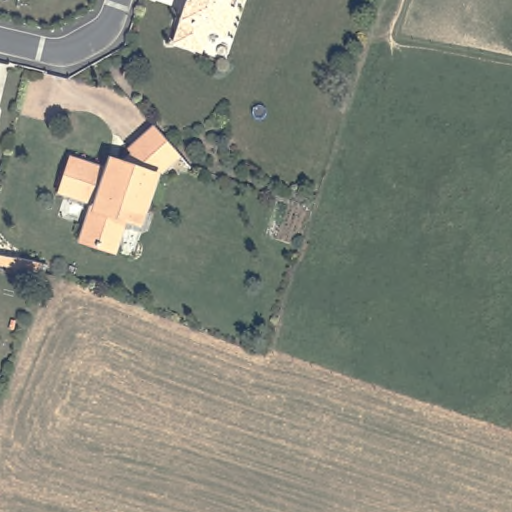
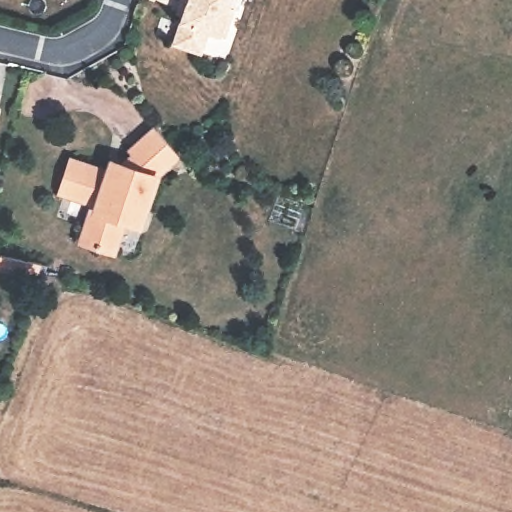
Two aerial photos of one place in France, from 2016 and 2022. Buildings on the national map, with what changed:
unchanged [(234,6),(224,35),(208,29),(200,51),(171,42),(185,0),(229,0),(228,4),(234,6)]
unchanged [(118,219),(107,252),(75,241),(88,203),(56,193),(66,160),(102,172),(106,161),(116,164),(128,153),(124,149),(148,128),(173,155),(150,176),(139,209),(133,224),(118,219)]

